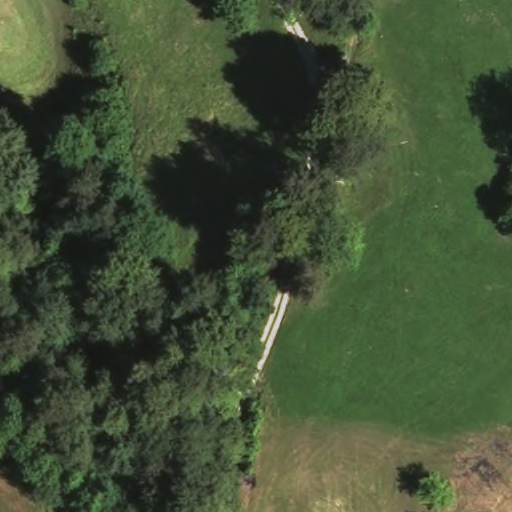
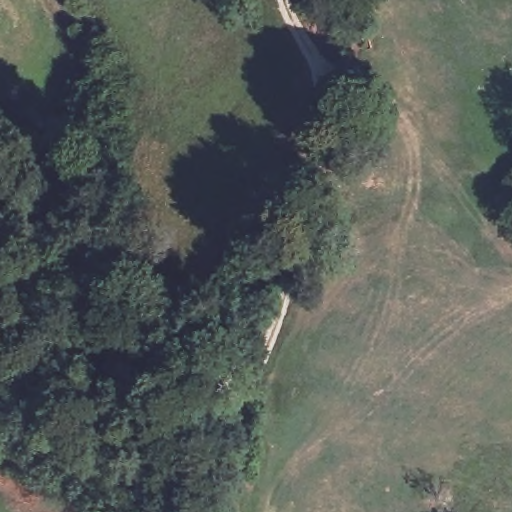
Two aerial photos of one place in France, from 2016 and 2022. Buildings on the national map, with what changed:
[]

